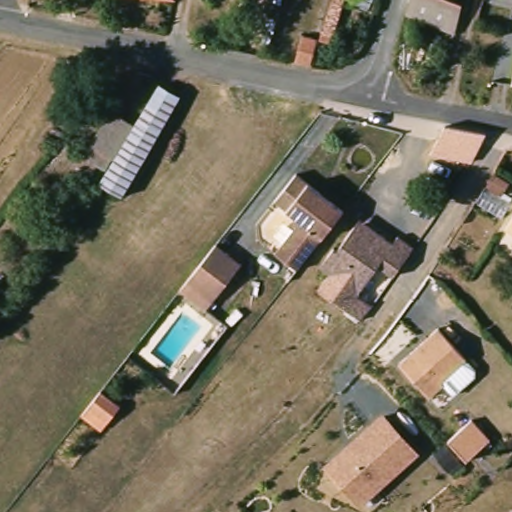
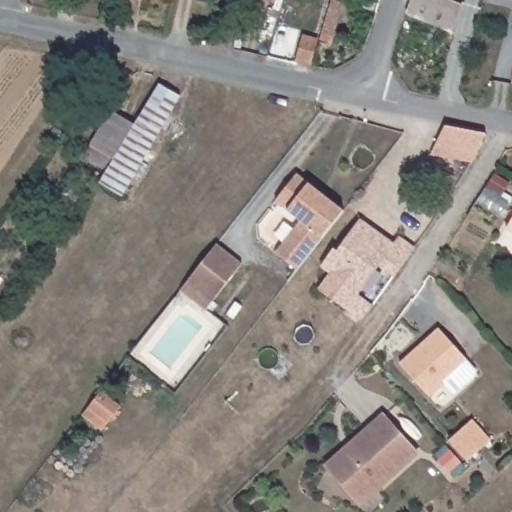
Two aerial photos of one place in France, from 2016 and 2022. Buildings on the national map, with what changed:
unchanged [(320,0),(330,0),(317,44),(308,41),(320,0)]
unchanged [(466,4),(459,32),(409,15),(415,0),(453,0),(466,4)]
unchanged [(290,36),(304,40),(298,65),(284,62),(290,36)]
unchanged [(137,127),(160,87),(178,97),(121,196),(103,186),(111,172),(137,127)]
unchanged [(89,159),(114,115),(137,127),(111,172),(89,159)]
unchanged [(461,159),(430,152),(442,125),(486,133),(482,140),(470,162),(461,159)]
unchanged [(272,253),(297,221),(272,201),(293,174),(340,211),(327,228),(294,270),(272,253)]
unchanged [(507,237),(504,226),(512,213),(512,241),(507,237)]
unchanged [(319,289),(330,273),(320,265),(333,245),(338,249),(355,226),(360,219),(367,224),(392,243),(399,236),(415,247),(394,278),(378,267),(357,294),(373,307),(368,313),(362,321),(346,309),(319,289)]
unchanged [(210,244),(235,264),(206,301),(180,281),(210,244)]
unchanged [(477,374),(437,409),(394,363),(437,327),(477,374)]
unchanged [(100,396),(120,411),(101,434),(82,419),(100,396)]
unchanged [(323,464),(382,412),(420,454),(358,507),(323,464)]
unchanged [(472,419),(489,441),(465,461),(447,440),(472,419)]

